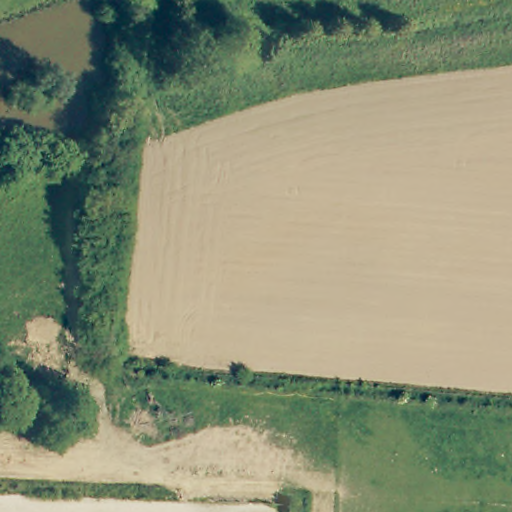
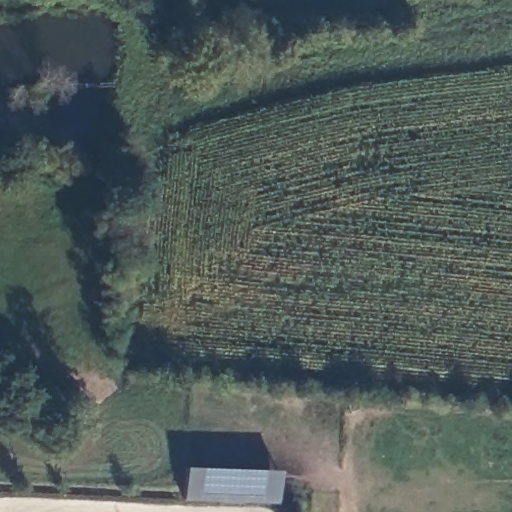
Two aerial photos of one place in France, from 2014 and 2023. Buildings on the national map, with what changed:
new [(181,466),(277,469),(275,503),(181,499),(181,466)]

